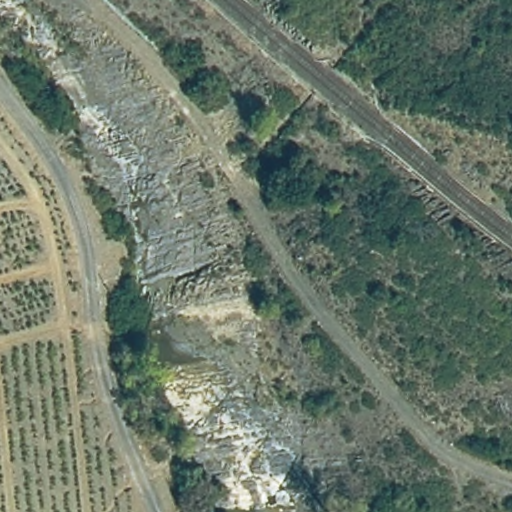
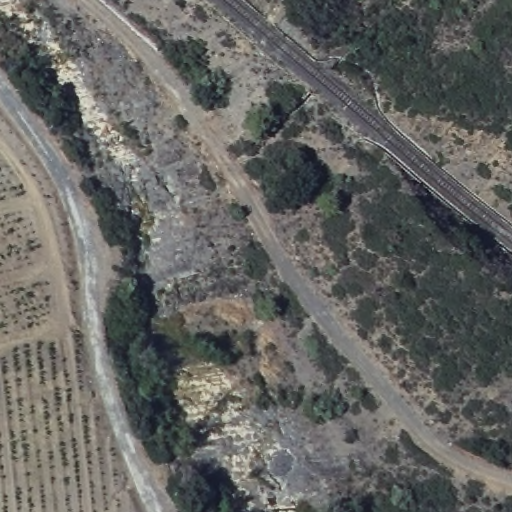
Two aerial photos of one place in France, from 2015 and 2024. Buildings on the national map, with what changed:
[]

